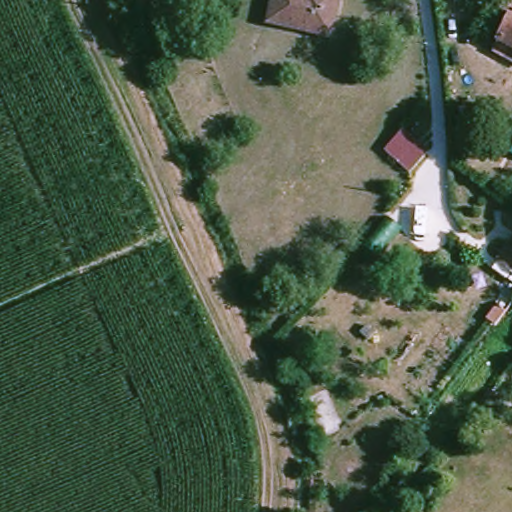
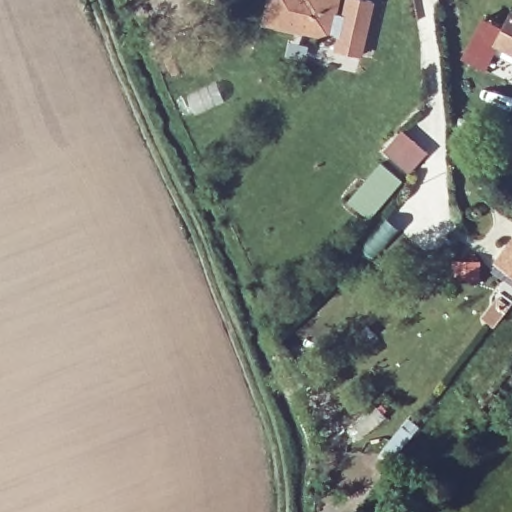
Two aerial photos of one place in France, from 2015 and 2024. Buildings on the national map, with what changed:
unchanged [(336,34),(271,20),(275,0),(343,0),(336,34)]
new [(346,0),(362,0),(374,3),(362,57),(335,50),(346,0)]
unchanged [(512,15),(512,46),(499,39),(512,15)]
unchanged [(386,150),(405,129),(430,151),(411,172),(386,150)]
new [(402,182),(368,219),(348,201),(380,164),(402,182)]
unchanged [(512,243),(512,262),(503,255),(512,243)]
unchanged [(370,330),(375,333),(372,338),(367,335),(370,330)]
unchanged [(495,406),(490,414),(483,410),(495,394),(501,399),(495,406)]

